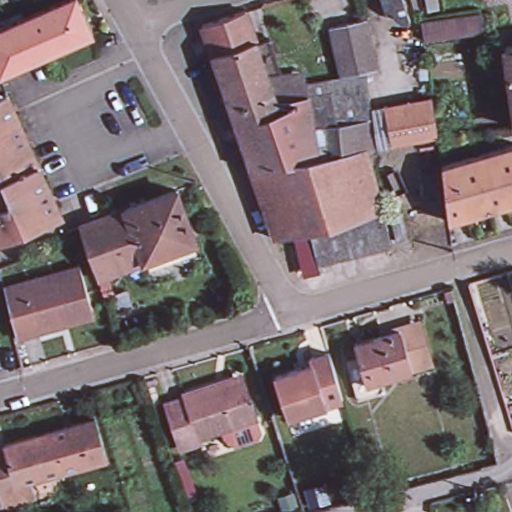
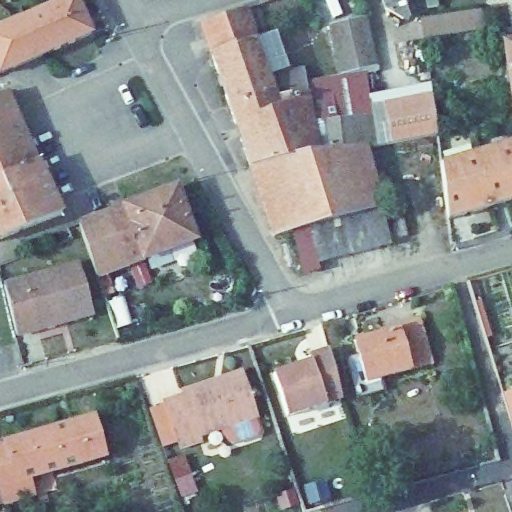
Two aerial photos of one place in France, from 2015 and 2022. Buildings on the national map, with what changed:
unchanged [(0,70),(0,28),(66,0),(81,0),(96,33),(2,75),(0,70)]
unchanged [(381,5),(379,0),(401,0),(405,19),(400,19),(381,5)]
unchanged [(214,55),(204,27),(244,12),(256,42),(214,55)]
unchanged [(368,15),(376,65),(367,66),(340,73),(328,25),(368,15)]
unchanged [(424,41),(422,23),(482,15),(485,32),(424,41)]
unchanged [(431,99),(436,139),(429,140),(392,147),(378,150),(366,152),(253,169),(214,55),(256,42),(273,89),(303,83),(364,74),(366,90),(371,111),(385,108),(431,99)]
unchanged [(512,47),(512,93),(505,47),(512,47)]
unchanged [(27,225),(0,235),(0,92),(10,87),(64,211),(54,215),(59,229),(33,240),(27,225)]
unchanged [(440,165),(512,142),(512,200),(447,220),(440,165)]
unchanged [(309,230),(274,240),(273,236),(276,235),(253,169),(366,152),(386,211),(309,230)]
unchanged [(99,275),(82,225),(180,189),(198,239),(99,275)]
unchanged [(319,264),(309,230),(386,211),(397,243),(319,264)]
unchanged [(19,335),(5,285),(83,264),(96,314),(69,322),(68,318),(46,324),(47,328),(19,335)]
unchanged [(449,301),(446,289),(454,286),(458,299),(449,301)]
unchanged [(351,364),(363,361),(359,348),(404,335),(424,330),(435,370),(417,375),(388,383),(391,396),(362,404),(351,364)]
unchanged [(285,412),(274,371),(311,362),(311,356),(331,350),(343,398),(285,412)]
unchanged [(166,401),(186,395),(186,393),(212,385),(214,388),(244,379),(256,416),(198,435),(200,440),(181,445),(166,401)]
unchanged [(10,451),(9,448),(101,423),(111,463),(35,484),(39,502),(24,507),(9,512),(8,510),(2,512),(0,512),(0,454),(10,451)]

